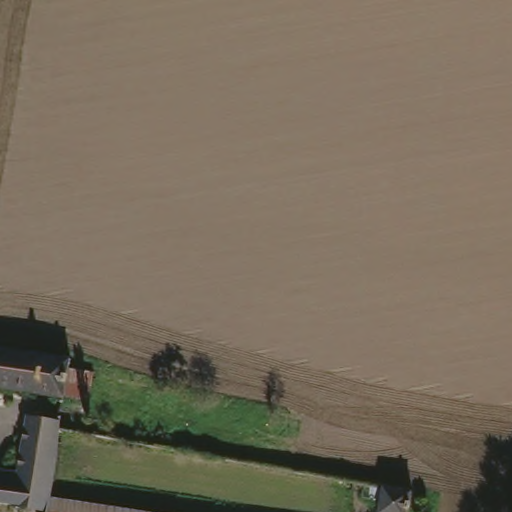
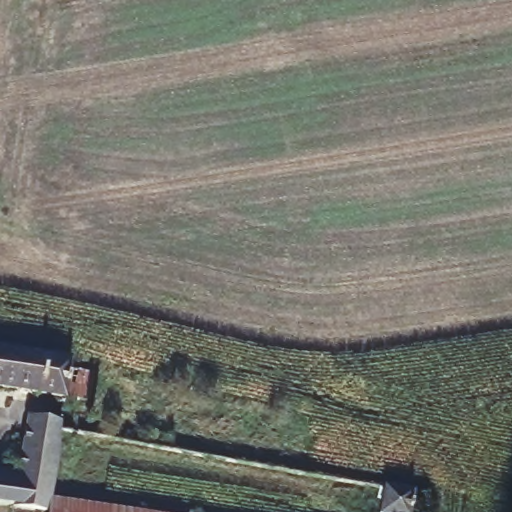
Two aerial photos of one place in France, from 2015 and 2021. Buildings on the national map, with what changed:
unchanged [(66,348),(62,372),(58,384),(0,376),(0,338),(66,348)]
unchanged [(11,506),(12,498),(0,497),(0,464),(19,466),(27,412),(59,415),(59,428),(49,501),(48,511),(11,506)]
unchanged [(412,512),(380,512),(384,485),(414,491),(412,512)]
unchanged [(48,512),(48,511),(49,501),(155,512),(48,512)]

